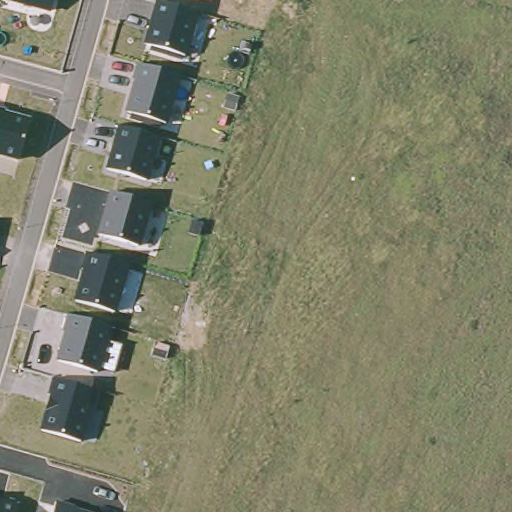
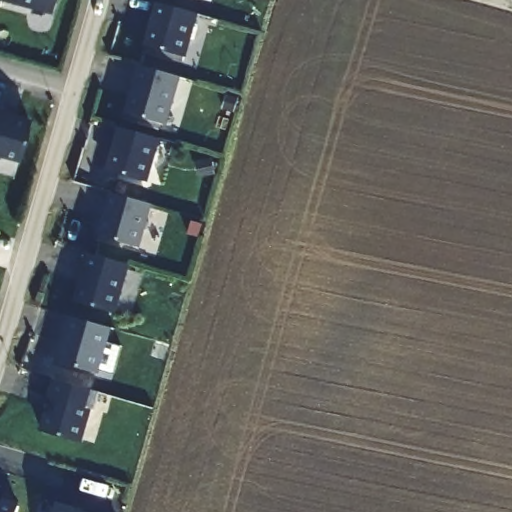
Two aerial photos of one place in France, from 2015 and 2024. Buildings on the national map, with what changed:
unchanged [(51,14),(0,0),(55,0),(51,14)]
unchanged [(200,12),(188,55),(143,44),(155,1),(200,12)]
unchanged [(182,77),(169,125),(125,112),(138,65),(182,77)]
unchanged [(31,117),(20,162),(0,157),(0,109),(31,117)]
unchanged [(160,138),(148,182),(105,169),(117,126),(160,138)]
unchanged [(153,205),(140,247),(97,235),(110,192),(153,205)]
unchanged [(129,265),(115,313),(73,300),(87,253),(129,265)]
unchanged [(110,327),(98,372),(56,360),(68,315),(110,327)]
unchanged [(96,392),(82,442),(40,431),(53,379),(96,392)]
unchanged [(18,512),(0,512),(0,499),(20,505),(18,512)]
unchanged [(53,512),(55,502),(91,512),(53,512)]

